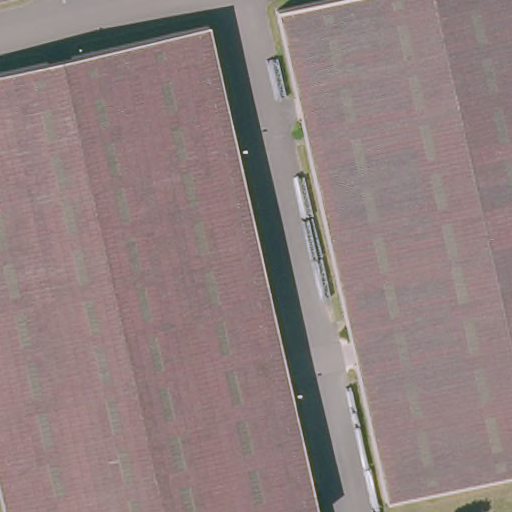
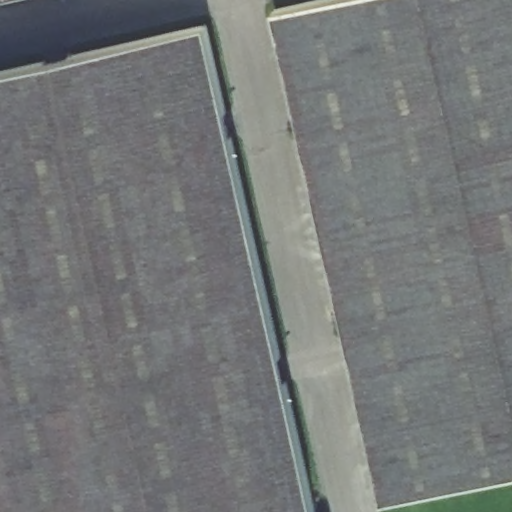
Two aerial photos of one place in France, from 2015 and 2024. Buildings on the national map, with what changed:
unchanged [(35,0),(0,8),(0,0),(35,0)]
unchanged [(307,0),(512,0),(512,471),(401,495),(296,2),(307,0)]
unchanged [(381,500),(274,7),(296,2),(401,495),(381,500)]
unchanged [(204,22),(317,512),(2,512),(0,504),(0,69),(204,22)]

